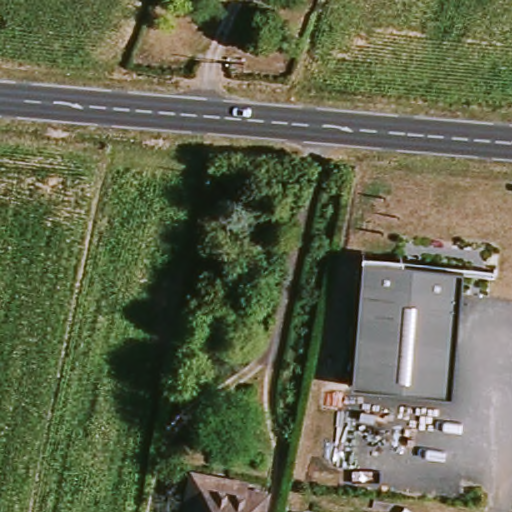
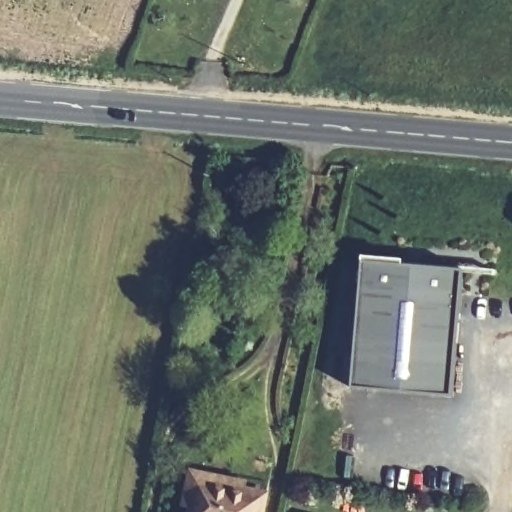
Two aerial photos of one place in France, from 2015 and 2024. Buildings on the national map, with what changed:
unchanged [(458,271),(450,397),(350,390),(361,258),(458,271)]
unchanged [(190,468),(247,476),(245,487),(267,490),(262,512),(192,512),(193,509),(183,507),(190,468)]

